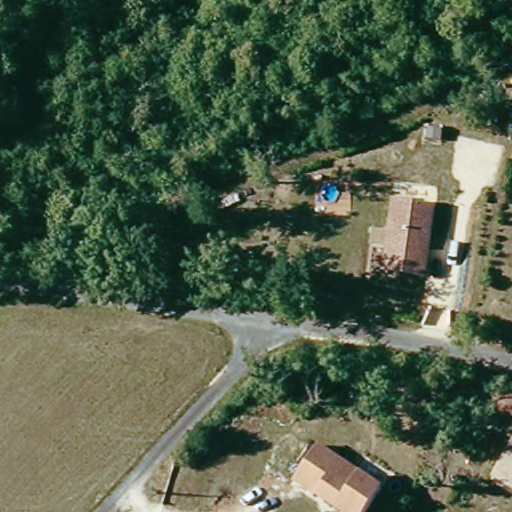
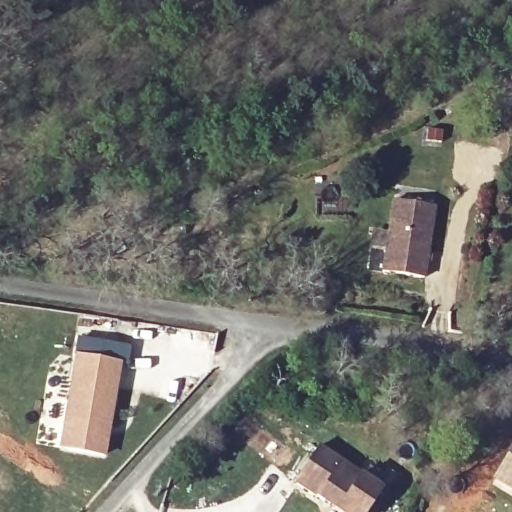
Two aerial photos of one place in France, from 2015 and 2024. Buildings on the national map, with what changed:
unchanged [(427,278),(387,272),(397,201),(439,208),(427,278)]
new [(78,338),(131,347),(128,363),(122,363),(107,456),(59,449),(76,354),(78,338)]
unchanged [(316,449),(384,486),(370,512),(351,512),(327,498),(325,501),(295,484),(316,449)]
unchanged [(512,455),(512,485),(499,478),(512,455)]

